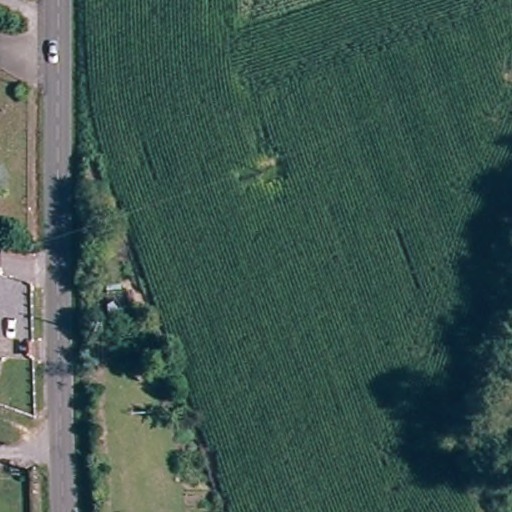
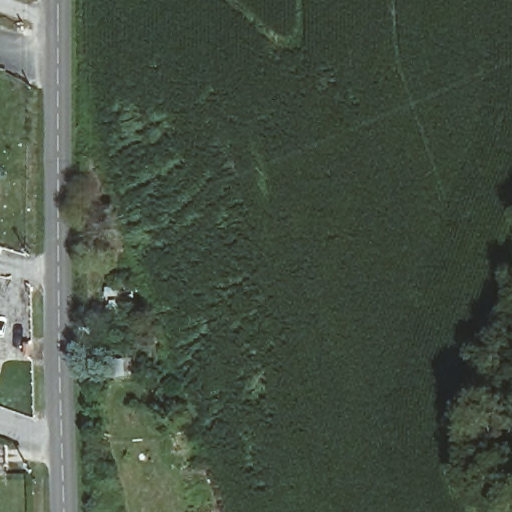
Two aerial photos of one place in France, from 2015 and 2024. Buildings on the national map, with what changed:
[]

